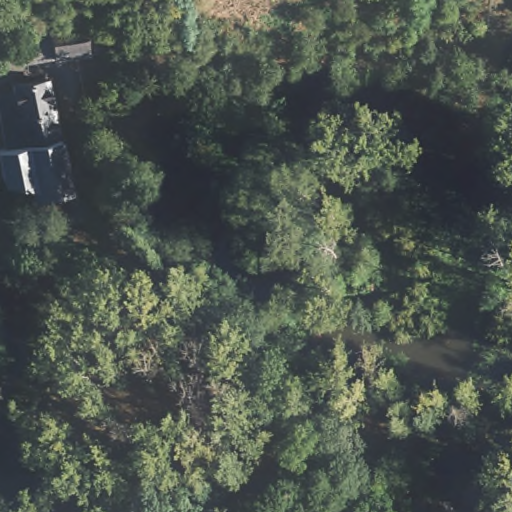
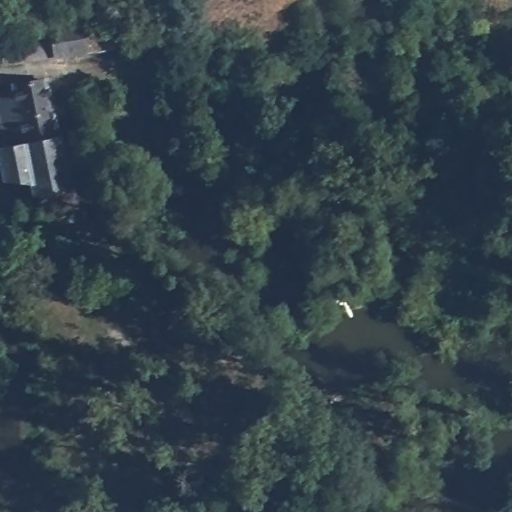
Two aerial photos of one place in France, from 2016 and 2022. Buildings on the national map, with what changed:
unchanged [(116,24),(120,52),(54,61),(53,47),(51,37),(51,33),(71,30),(116,24)]
unchanged [(0,74),(0,49),(51,37),(53,47),(54,61),(0,74)]
unchanged [(57,147),(21,155),(18,138),(1,142),(0,137),(0,104),(10,102),(8,95),(44,86),(57,147)]
unchanged [(63,174),(65,185),(66,189),(30,197),(28,186),(4,191),(0,172),(0,159),(21,155),(57,147),(63,174)]

